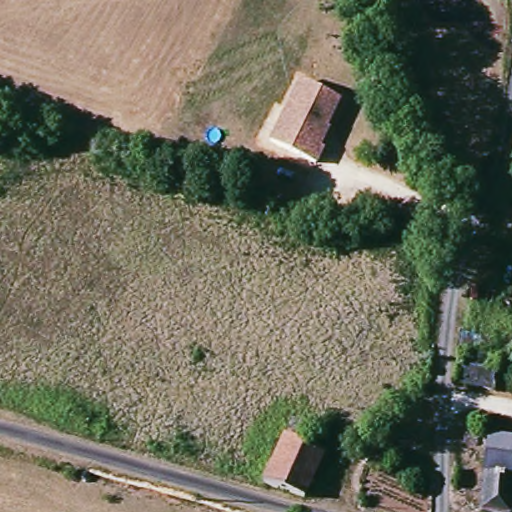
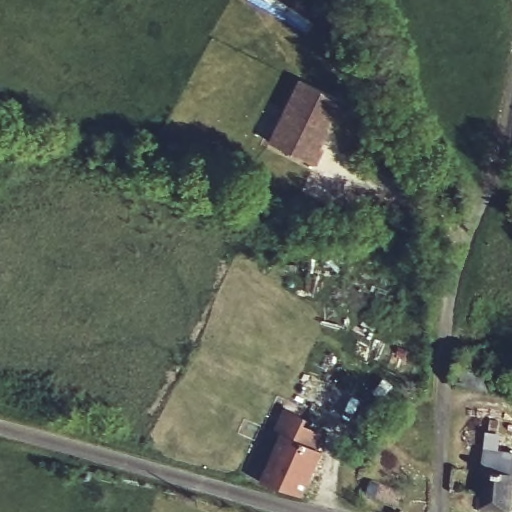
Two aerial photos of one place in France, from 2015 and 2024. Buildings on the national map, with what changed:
unchanged [(341,98),(316,159),(269,137),(298,76),(341,98)]
unchanged [(449,376),(452,347),(495,349),(494,366),(493,378),(449,376)]
unchanged [(289,502),(264,491),(265,491),(293,435),(296,429),(321,438),(323,438),(289,502)]
unchanged [(485,436),(512,440),(512,512),(474,507),(481,472),(484,450),(485,436)]

